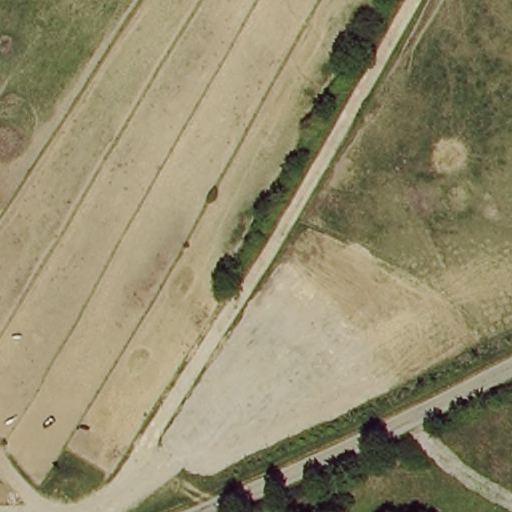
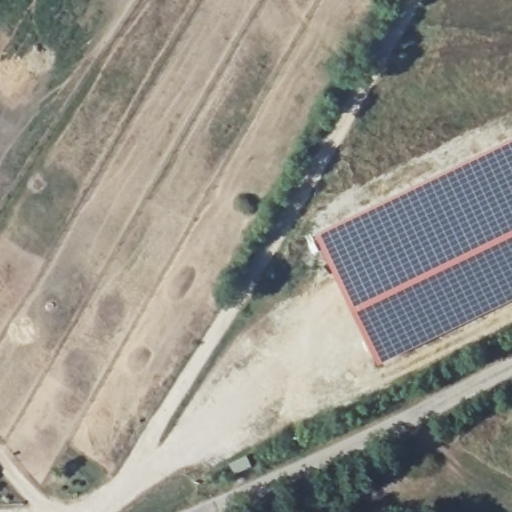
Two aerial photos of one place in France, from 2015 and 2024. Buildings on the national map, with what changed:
new [(512,137),(512,300),(441,334),(378,366),(312,233),(375,201),(512,137)]

